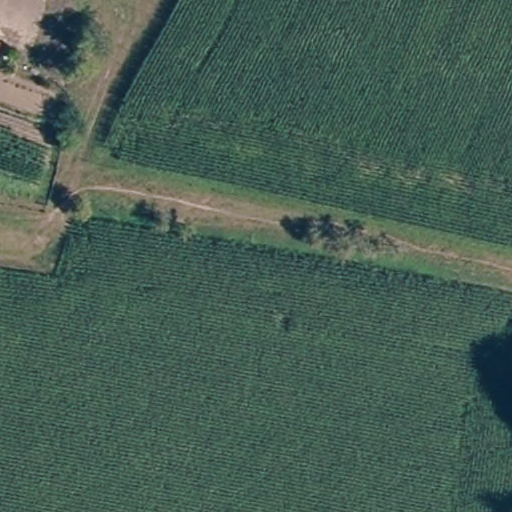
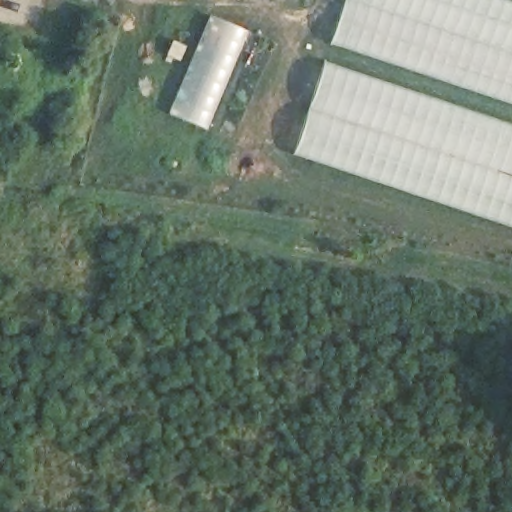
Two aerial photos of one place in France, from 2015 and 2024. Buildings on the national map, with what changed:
new [(330,40),(344,0),(506,0),(512,2),(512,102),(330,40)]
new [(208,16),(249,32),(207,130),(167,112),(208,16)]
new [(512,123),(512,226),(292,154),(323,59),(512,123)]

